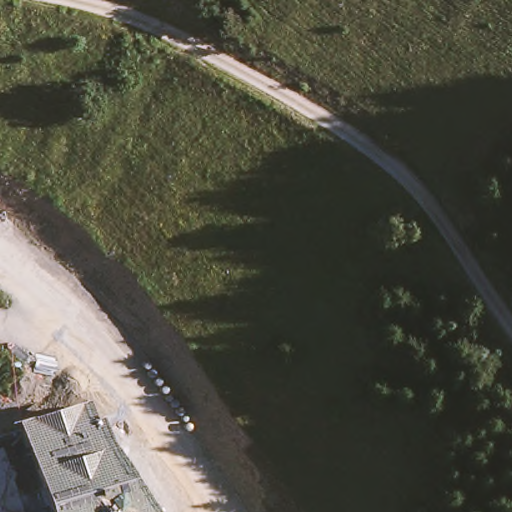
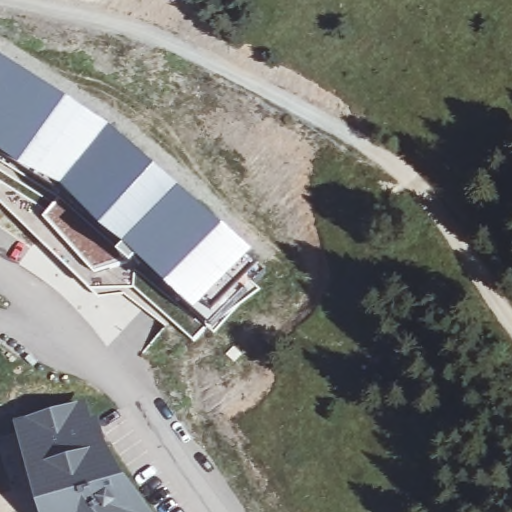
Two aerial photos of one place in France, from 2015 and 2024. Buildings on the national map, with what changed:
new [(109,124),(264,250),(205,324),(64,186),(0,145),(0,49),(66,92),(109,124)]
unchanged [(95,421),(100,420),(110,448),(153,512),(43,512),(16,423),(88,402),(95,421)]

